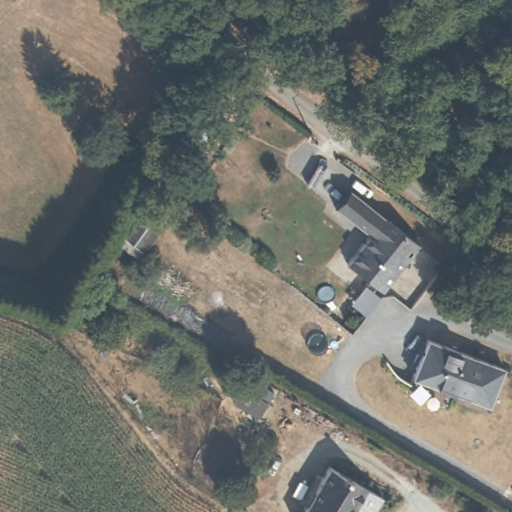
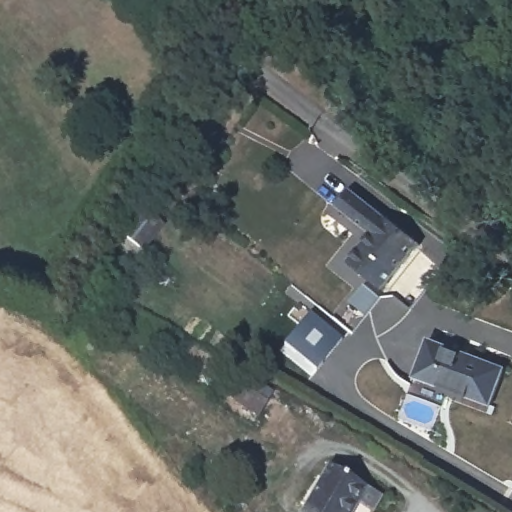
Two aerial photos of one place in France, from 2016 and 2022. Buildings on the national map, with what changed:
unchanged [(370,236),(337,207),(351,190),(416,244),(378,292),(345,264),(370,236)]
new [(318,371),(284,344),(310,311),(344,338),(318,371)]
unchanged [(489,405),(417,379),(429,342),(502,367),(489,405)]
unchanged [(262,413),(236,398),(244,383),(270,398),(262,413)]
unchanged [(356,512),(308,512),(333,467),(369,487),(356,512)]

